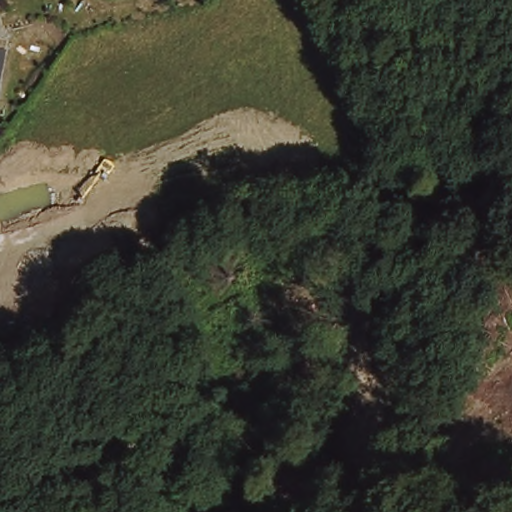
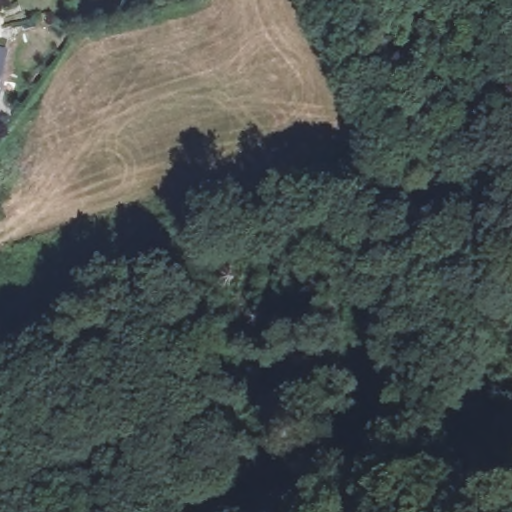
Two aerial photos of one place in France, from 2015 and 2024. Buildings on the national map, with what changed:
unchanged [(10,71),(5,100),(0,100),(0,69),(10,71)]

